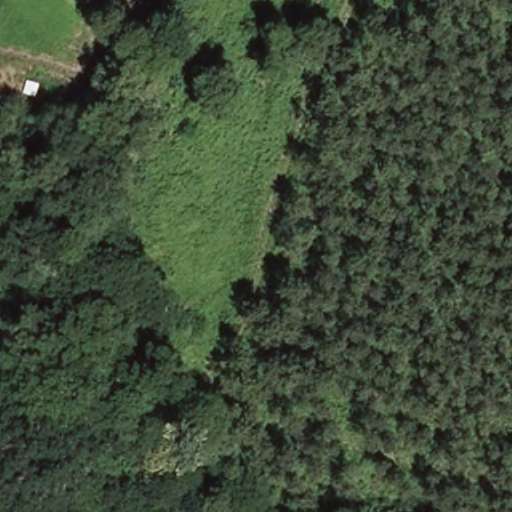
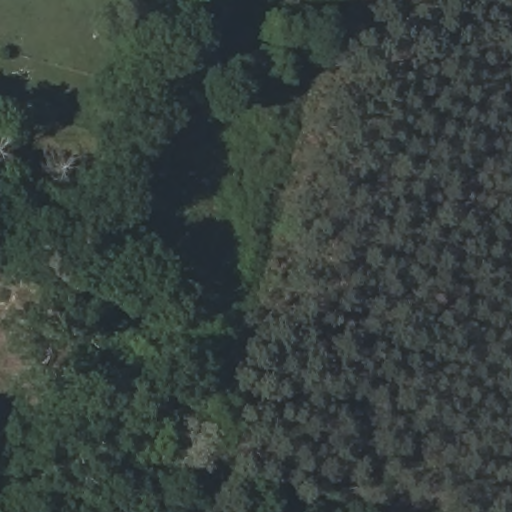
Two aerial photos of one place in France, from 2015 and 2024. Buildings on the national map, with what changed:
[]

